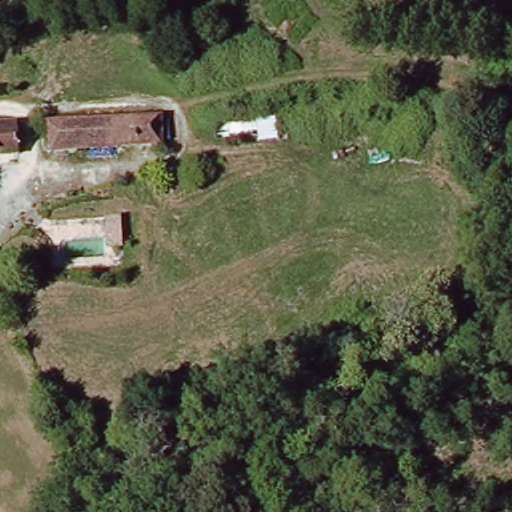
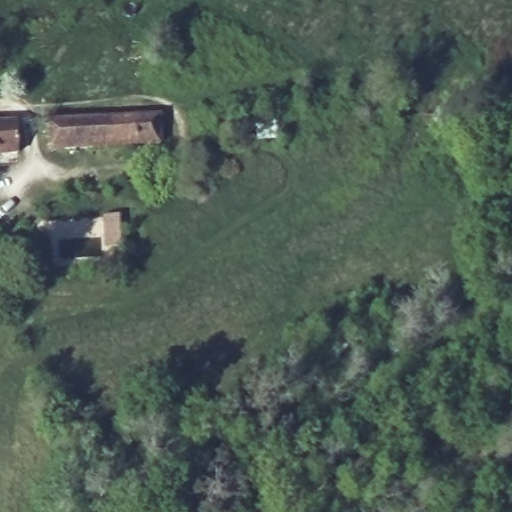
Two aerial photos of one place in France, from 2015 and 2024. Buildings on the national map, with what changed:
unchanged [(161,111),(165,148),(53,163),(49,124),(161,111)]
unchanged [(11,119),(20,155),(0,161),(0,122),(11,119)]
unchanged [(124,242),(110,244),(104,216),(118,213),(124,242)]

